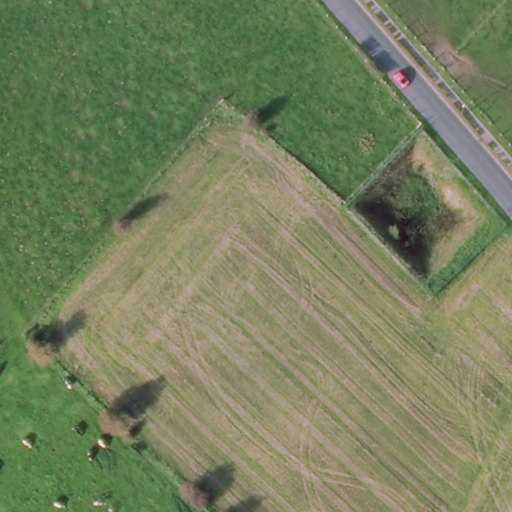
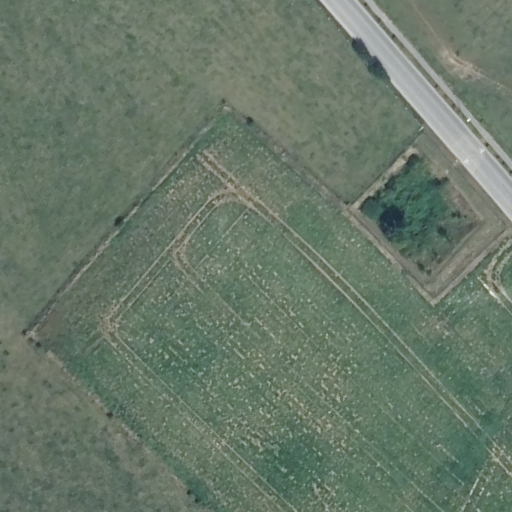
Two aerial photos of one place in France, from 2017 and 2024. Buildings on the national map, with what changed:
[]

